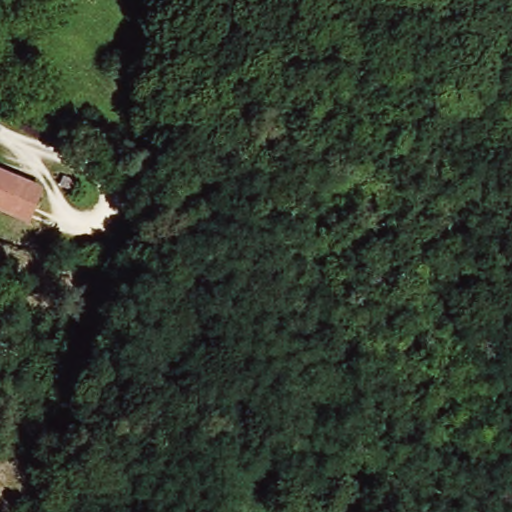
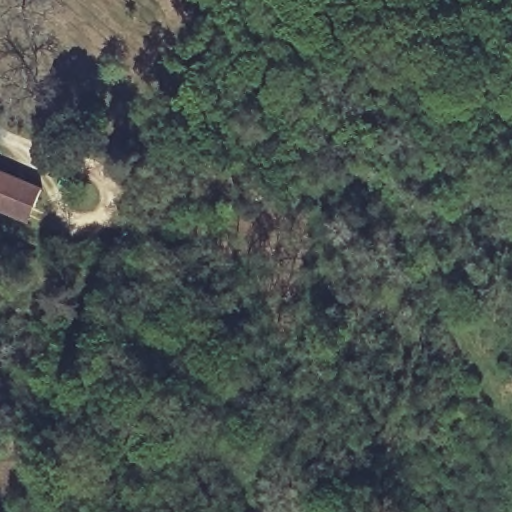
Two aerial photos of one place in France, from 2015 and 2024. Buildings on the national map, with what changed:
unchanged [(0,200),(0,174),(48,194),(40,215),(0,200)]

